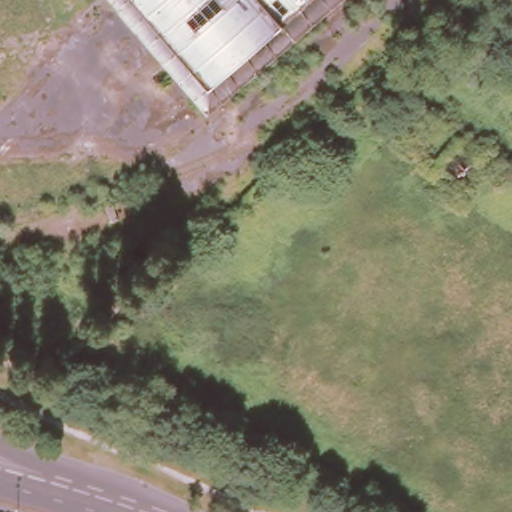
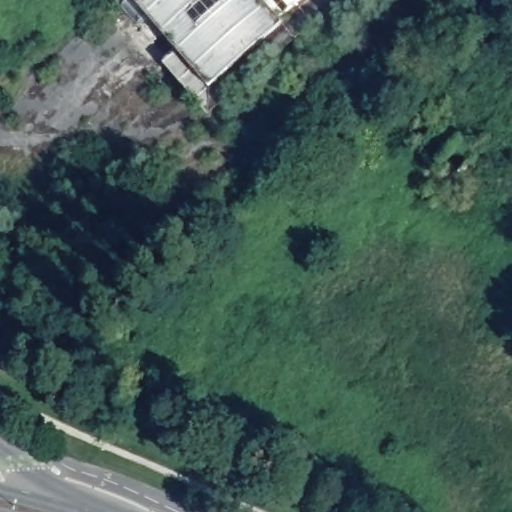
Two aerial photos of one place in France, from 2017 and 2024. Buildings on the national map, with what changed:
unchanged [(125,0),(327,0),(211,101),(125,0)]

